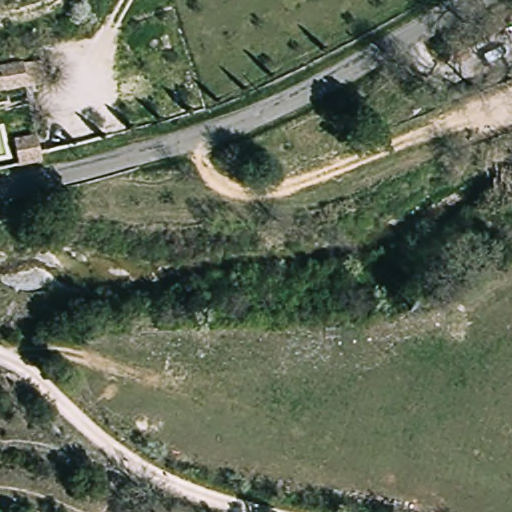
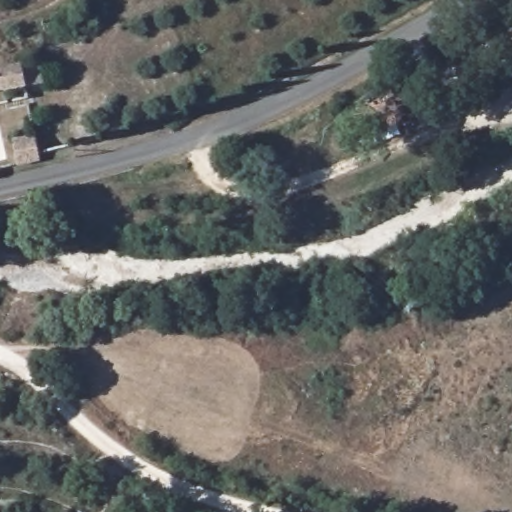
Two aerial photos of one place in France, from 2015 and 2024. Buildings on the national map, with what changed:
unchanged [(34,79),(34,81),(30,82),(0,89),(0,67),(30,61),(34,79)]
unchanged [(3,136),(25,130),(31,152),(9,158),(3,136)]

